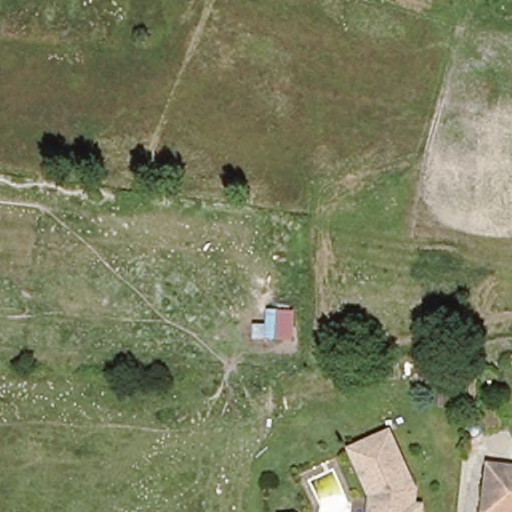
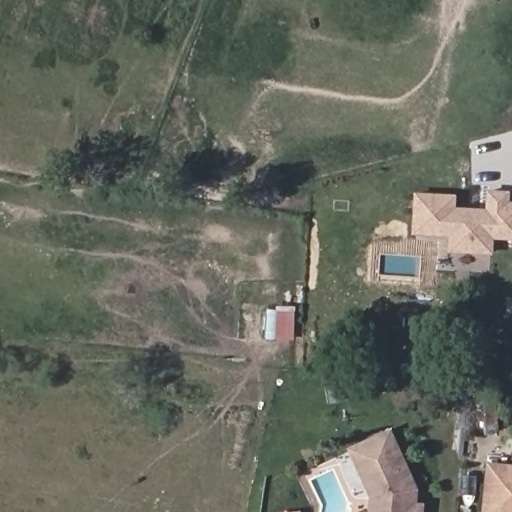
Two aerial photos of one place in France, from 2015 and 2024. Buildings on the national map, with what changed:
new [(415,192),(458,194),(457,206),(486,207),(487,190),(511,190),(510,201),(512,201),(512,239),(497,238),(495,254),(450,251),(450,235),(413,235),(415,192)]
unchanged [(377,501),(355,450),(388,436),(415,495),(413,512),(376,512),(377,501)]
unchanged [(512,464),(512,512),(483,512),(486,463),(512,464)]

